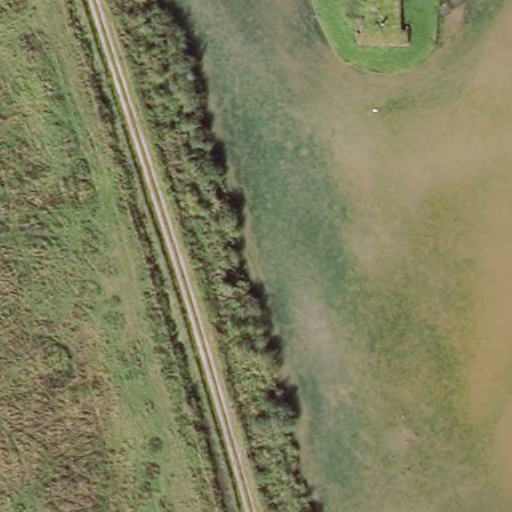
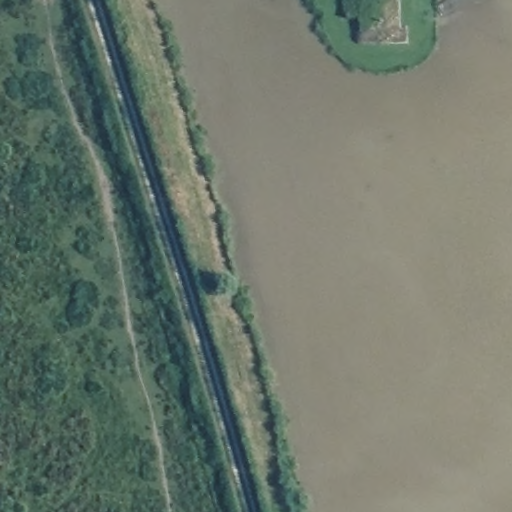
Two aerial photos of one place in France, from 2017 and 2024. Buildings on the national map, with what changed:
unchanged [(400,0),(407,48),(362,52),(358,24),(352,25),(350,0),(362,0),(362,4),(375,2),(374,0),(400,0)]

